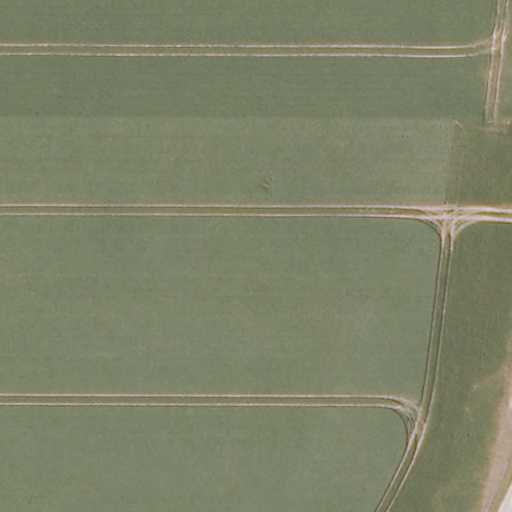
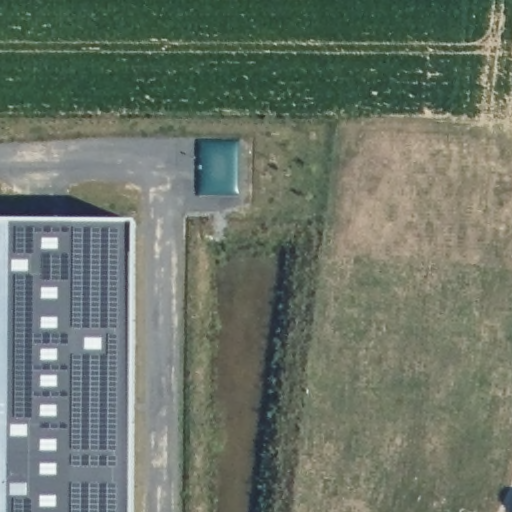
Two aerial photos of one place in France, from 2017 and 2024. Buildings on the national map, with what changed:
new [(133,512),(0,512),(0,221),(135,222),(133,512)]

